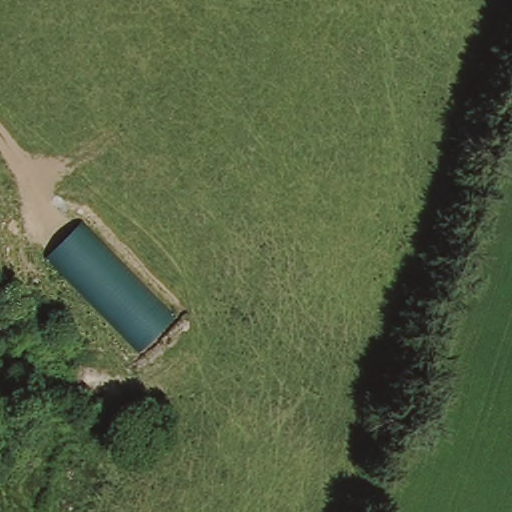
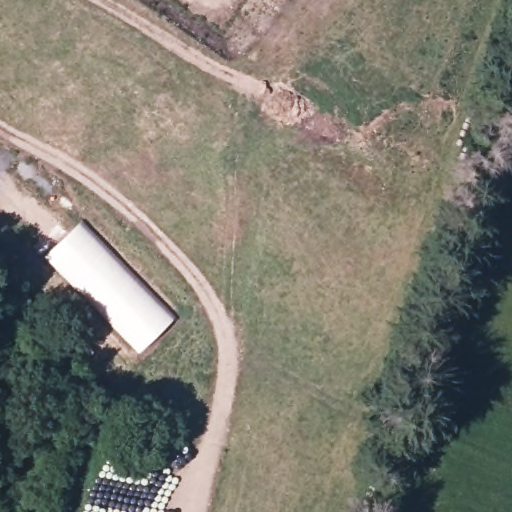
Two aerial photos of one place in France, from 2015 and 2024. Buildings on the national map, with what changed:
unchanged [(50,252),(80,223),(174,318),(142,349),(50,252)]

